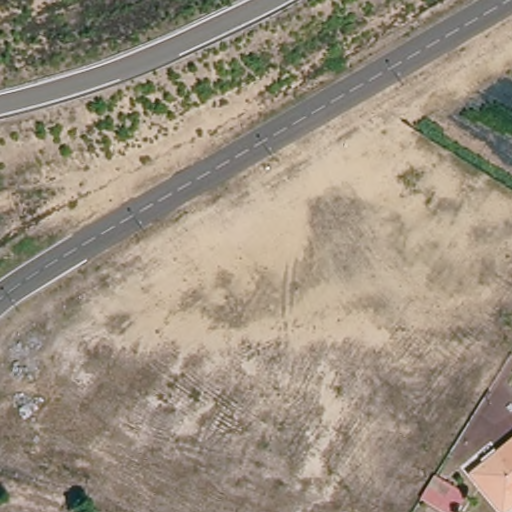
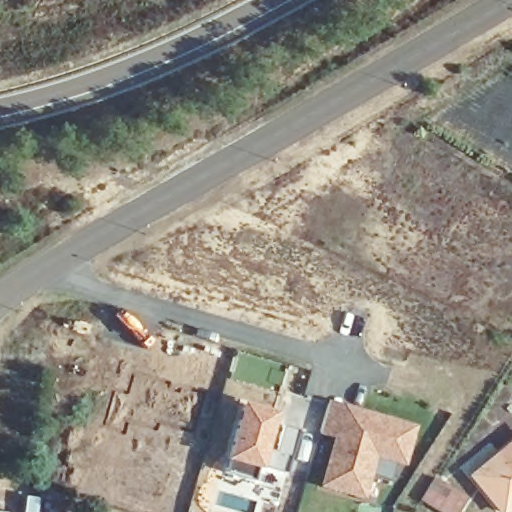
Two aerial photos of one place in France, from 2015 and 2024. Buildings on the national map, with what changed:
new [(240,400),(276,411),(266,449),(272,451),(280,426),(296,430),(281,473),(260,467),(259,471),(222,461),(240,400)]
new [(319,432),(328,403),(344,408),(413,428),(403,463),(374,454),(362,497),(322,485),(336,437),(319,432)]
unchanged [(494,512),(469,482),(512,447),(512,508),(507,512),(494,512)]
unchanged [(435,478),(467,498),(458,512),(442,512),(421,500),(426,492),(435,478)]

